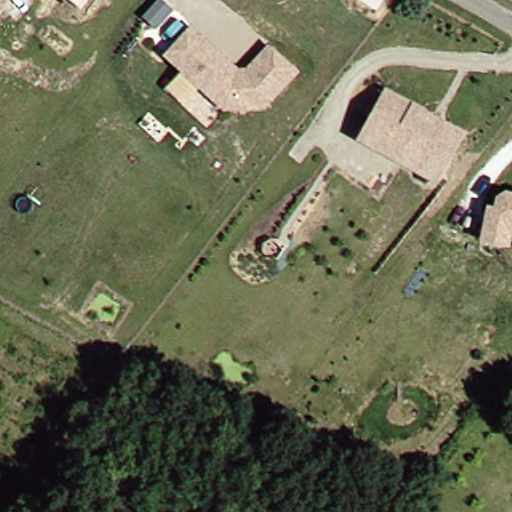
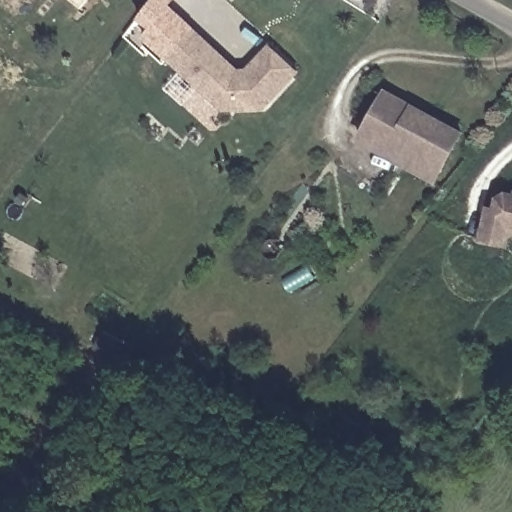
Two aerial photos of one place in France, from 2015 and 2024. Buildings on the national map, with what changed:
new [(151,28),(138,18),(152,0),(174,0),(171,5),(191,24),(160,56),(143,36),(151,28)]
unchanged [(239,66),(248,65),(269,43),(301,71),(266,111),(223,113),(160,56),(191,24),(239,66)]
unchanged [(385,89),(432,115),(430,119),(442,126),(445,122),(460,130),(441,165),(365,123),(385,89)]
unchanged [(365,123),(441,165),(433,178),(358,136),(365,123)]
unchanged [(507,247),(483,241),(490,209),(498,210),(500,200),(508,197),(512,197),(512,233),(510,233),(507,247)]

